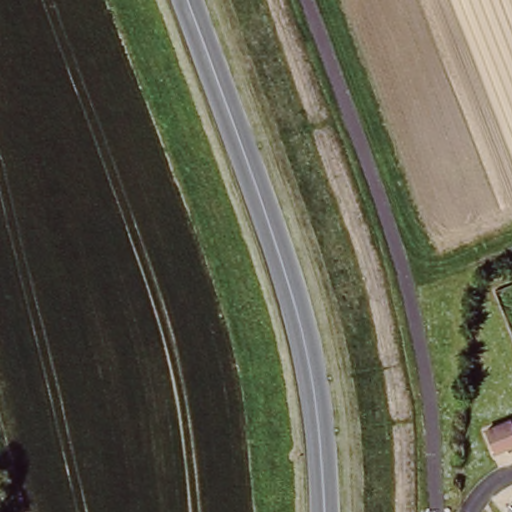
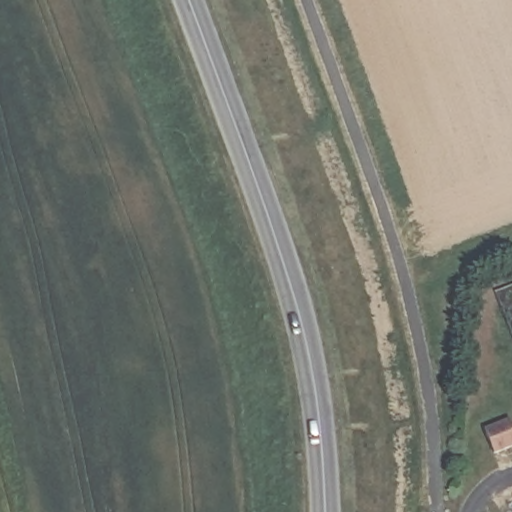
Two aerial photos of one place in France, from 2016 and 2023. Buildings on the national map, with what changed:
unchanged [(489,426),(512,418),(512,443),(497,449),(489,426)]

